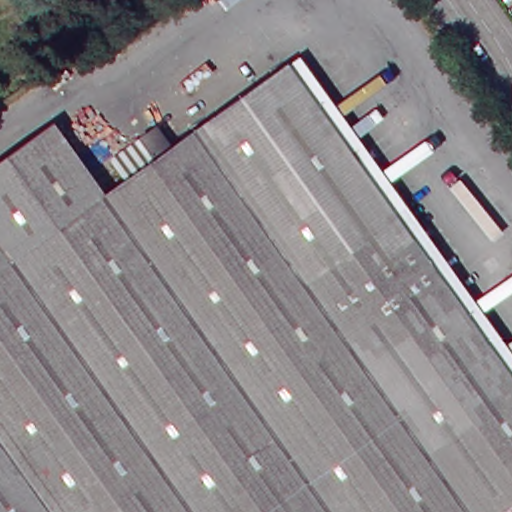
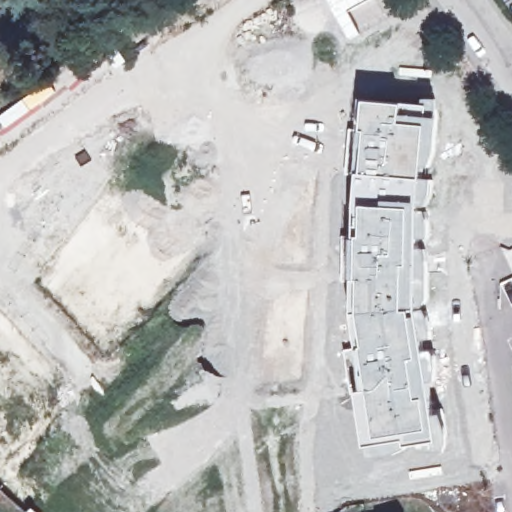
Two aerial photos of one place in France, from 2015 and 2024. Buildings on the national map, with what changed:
new [(362,34),(349,41),(327,0),(379,0),(390,18),(362,34)]
demolished [(38,154),(31,142),(56,124),(101,187),(124,171),(109,151),(138,130),(153,150),(170,138),(286,55),(392,203),(512,372),(512,512),(0,512),(0,172),(38,154)]
new [(355,173),(364,100),(438,101),(437,146),(429,169),(427,169),(424,178),(434,179),(429,209),(431,238),(421,238),(429,274),(431,323),(427,323),(429,334),(431,333),(432,340),(425,341),(427,351),(434,350),(438,381),(432,382),(441,444),(368,458),(354,390),(361,389),(351,306),(355,173)]
new [(484,466),(485,512),(340,512),(338,491),(484,466)]

